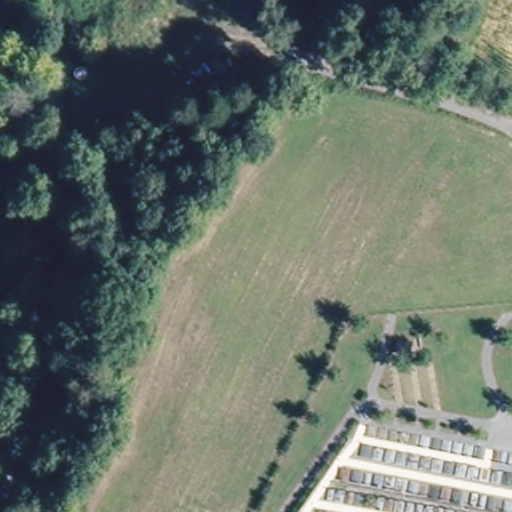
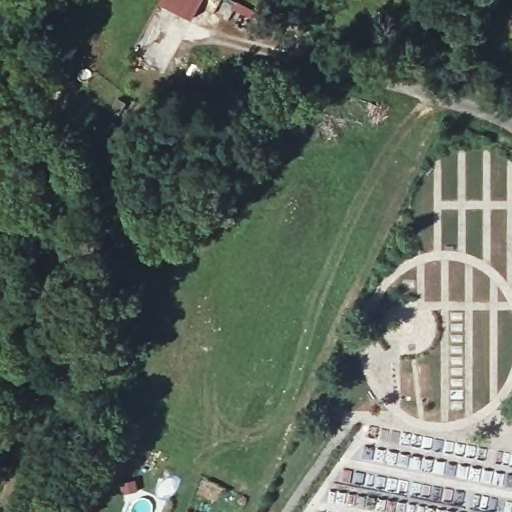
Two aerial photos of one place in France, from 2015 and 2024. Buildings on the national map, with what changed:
new [(162,0),(205,0),(194,21),(160,4),(162,0)]
unchanged [(370,45),(355,35),(360,23),(376,31),(370,45)]
unchanged [(116,115),(110,108),(115,101),(122,106),(116,115)]

